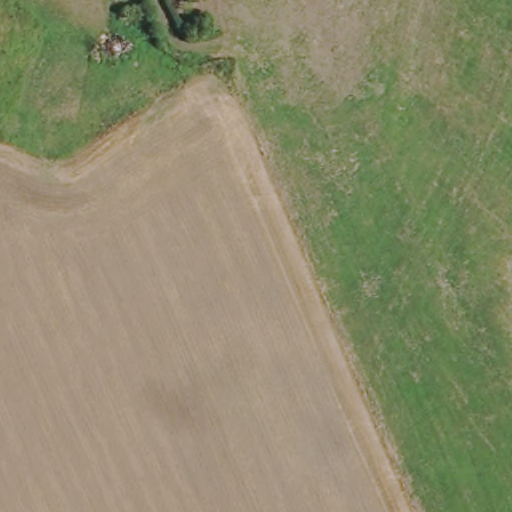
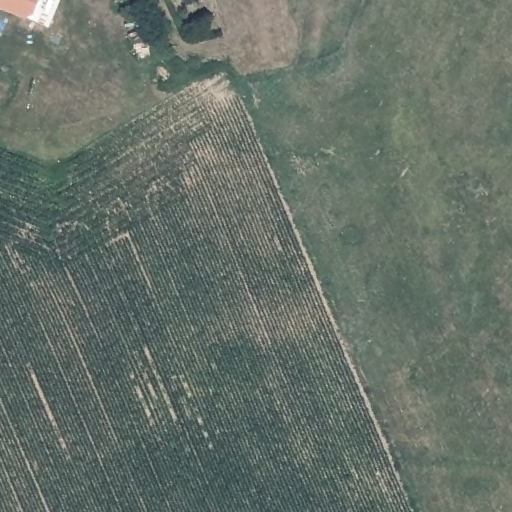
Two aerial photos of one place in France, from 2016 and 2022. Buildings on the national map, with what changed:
new [(34,16),(25,18),(0,9),(0,0),(40,0),(34,16)]

